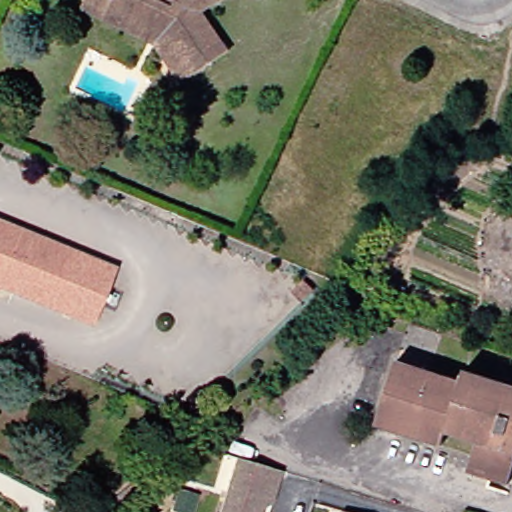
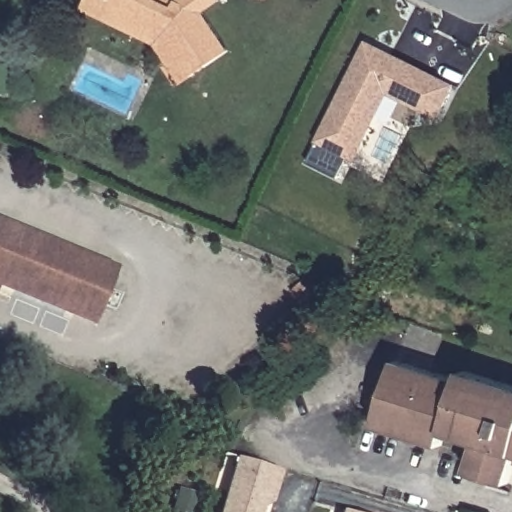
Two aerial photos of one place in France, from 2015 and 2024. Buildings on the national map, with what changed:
unchanged [(221,2),(204,13),(230,53),(192,78),(166,39),(107,11),(106,14),(85,3),(87,0),(173,0),(177,2),(180,0),(220,0),(220,1),(221,2)]
unchanged [(159,47),(83,10),(85,3),(106,14),(107,11),(166,39),(192,78),(183,84),(159,47)]
new [(397,60),(415,69),(431,76),(448,85),(433,117),(415,108),(399,100),(383,92),(373,112),(350,158),(314,141),(362,42),(386,54),(397,60)]
unchanged [(0,293),(0,222),(123,272),(102,324),(4,285),(1,293),(0,293)]
unchanged [(482,440),(451,430),(446,444),(399,428),(401,422),(383,417),(402,360),(467,381),(471,371),(512,384),(512,483),(474,470),(482,440)]
unchanged [(272,469),(283,472),(274,503),(265,509),(264,512),(223,512),(238,459),(272,469)]
unchanged [(349,512),(345,512),(345,511),(349,512)]

